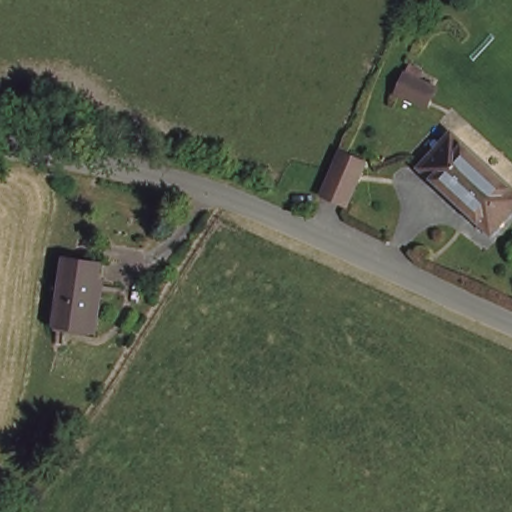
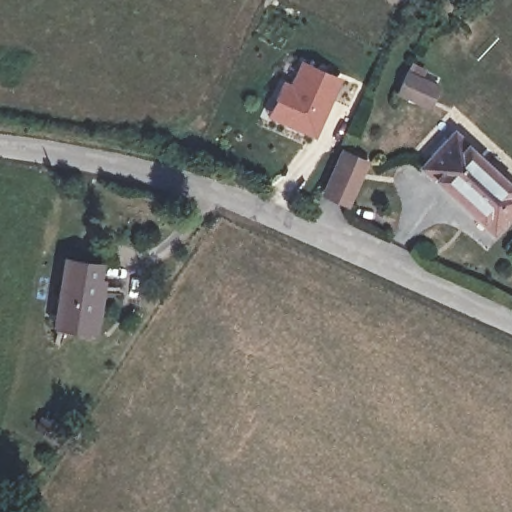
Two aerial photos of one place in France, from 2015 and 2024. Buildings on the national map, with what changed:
new [(280,80),(288,83),(300,59),(341,79),(314,138),(265,116),(280,80)]
unchanged [(439,90),(430,112),(405,102),(402,100),(410,77),(439,90)]
unchanged [(512,214),(496,232),(424,170),(452,137),(512,190),(512,214)]
unchanged [(361,167),(354,184),(345,206),(320,196),(335,156),(361,167)]
unchanged [(99,266),(95,284),(107,287),(96,336),(55,327),(68,262),(99,266)]

